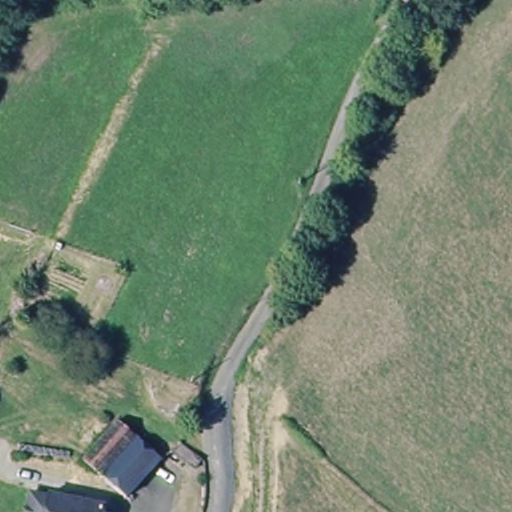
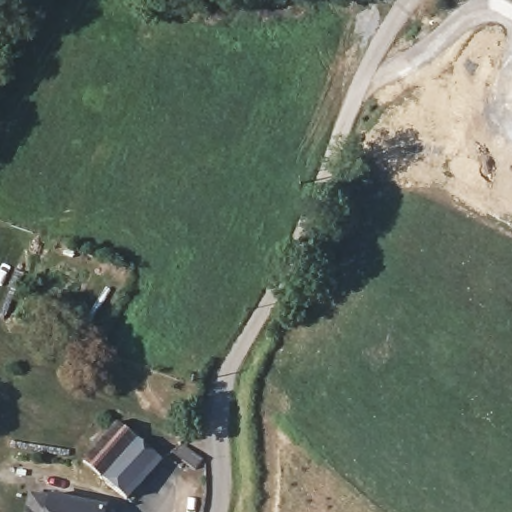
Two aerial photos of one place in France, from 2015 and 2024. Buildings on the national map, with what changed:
unchanged [(119,493),(104,480),(87,467),(122,425),(164,462),(130,502),(119,493)]
unchanged [(204,475),(185,459),(192,450),(212,466),(204,475)]
unchanged [(54,500),(50,512),(25,512),(31,494),(54,500)]
unchanged [(102,512),(50,512),(54,500),(102,512)]

